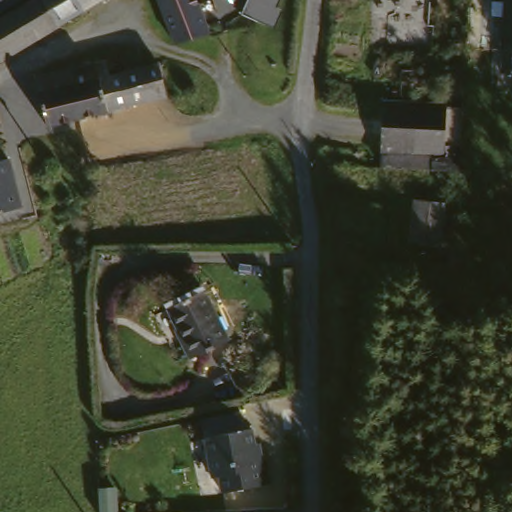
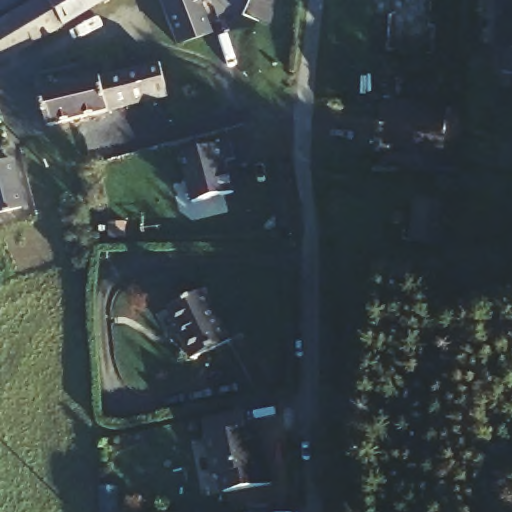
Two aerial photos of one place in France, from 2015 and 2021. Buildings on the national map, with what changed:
unchanged [(37,2),(6,20),(0,7),(0,0),(36,0),(37,2)]
unchanged [(42,0),(112,0),(89,13),(64,28),(0,66),(0,24),(6,21),(6,20),(37,2),(42,0)]
unchanged [(221,27),(193,40),(175,0),(210,0),(221,27)]
unchanged [(285,8),(290,11),(282,29),(249,16),(255,0),(288,0),(285,8)]
unchanged [(165,61),(174,94),(135,104),(89,116),(79,68),(108,59),(114,74),(165,61)]
unchanged [(511,67),(512,62),(512,67),(511,67)]
unchanged [(55,125),(42,78),(79,68),(89,116),(55,125)]
unchanged [(390,100),(455,105),(453,140),(468,141),(468,168),(439,167),(440,154),(388,151),(390,100)]
new [(180,155),(220,144),(228,142),(232,158),(225,160),(232,192),(191,202),(180,155)]
unchanged [(0,208),(0,158),(16,155),(25,202),(0,208)]
unchanged [(451,203),(446,242),(415,239),(418,199),(451,203)]
unchanged [(214,285),(239,339),(201,356),(175,304),(214,285)]
unchanged [(245,411),(245,430),(257,428),(260,455),(270,455),(272,485),(225,493),(221,470),(211,471),(206,419),(245,411)]

